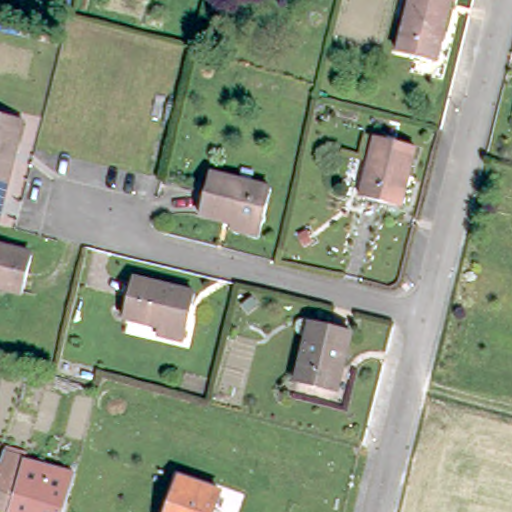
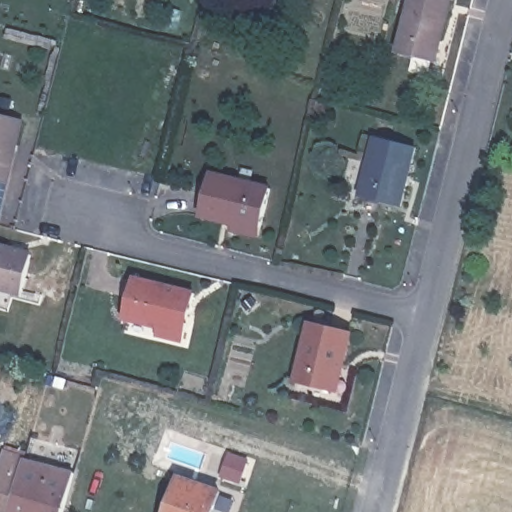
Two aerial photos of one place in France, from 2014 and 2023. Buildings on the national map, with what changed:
unchanged [(435,62),(397,55),(409,0),(450,0),(435,62)]
unchanged [(22,118),(0,199),(0,114),(22,118)]
unchanged [(421,150),(406,208),(366,199),(381,140),(421,150)]
unchanged [(232,231),(233,222),(203,216),(211,176),(271,190),(262,228),(259,237),(232,231)]
unchanged [(18,292),(0,288),(0,248),(26,255),(18,292)]
unchanged [(195,292),(183,337),(156,331),(158,323),(124,315),(133,277),(195,292)]
unchanged [(251,299),(240,307),(235,299),(246,291),(251,299)]
unchanged [(352,333),(336,392),(297,384),(311,324),(352,333)]
unchanged [(4,451),(26,456),(26,459),(11,512),(0,512),(0,459),(4,451)]
unchanged [(49,457),(75,466),(61,512),(11,512),(26,459),(46,464),(49,457)]
unchanged [(217,512),(167,512),(176,478),(222,489),(217,512)]

